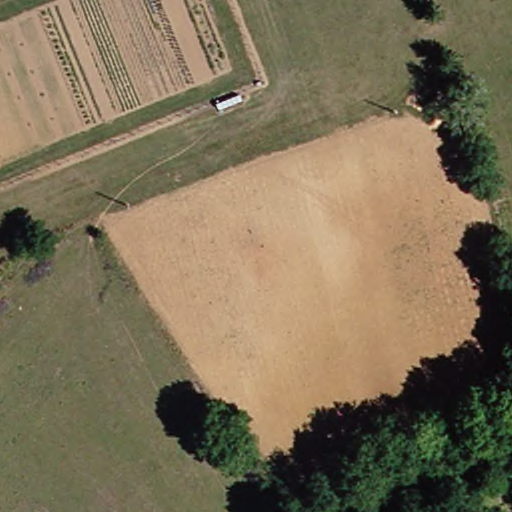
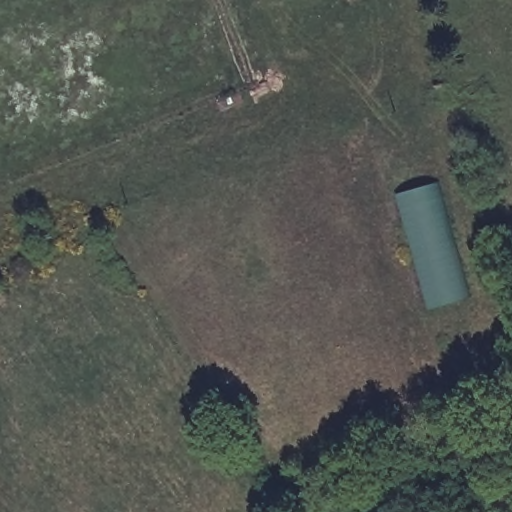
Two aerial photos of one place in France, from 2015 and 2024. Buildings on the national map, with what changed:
new [(397,195),(435,184),(465,299),(427,309),(397,195)]

